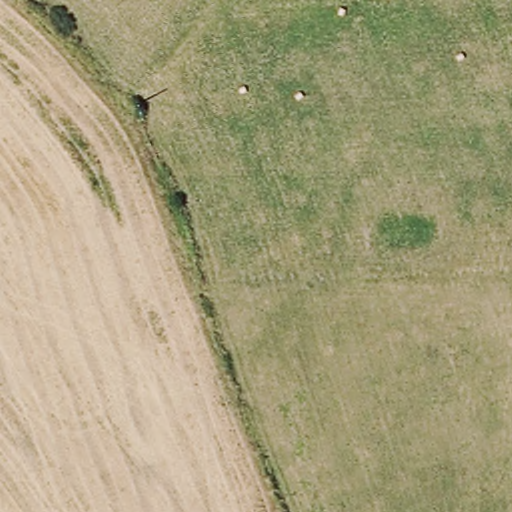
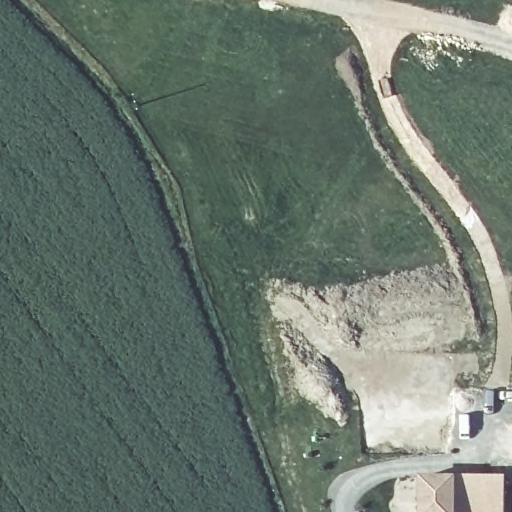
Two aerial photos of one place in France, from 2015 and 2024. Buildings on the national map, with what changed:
new [(504,474),(501,512),(417,512),(417,476),(453,475),(504,474)]

